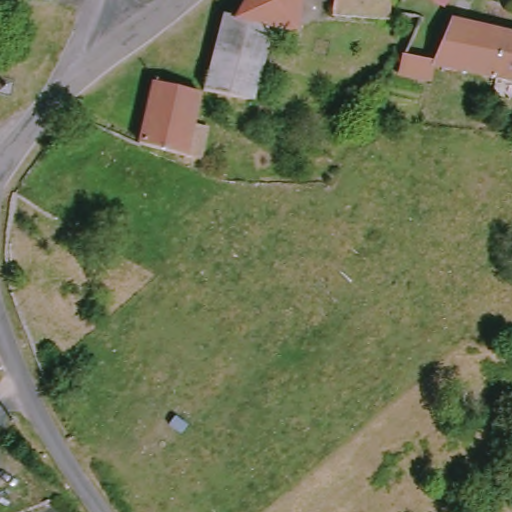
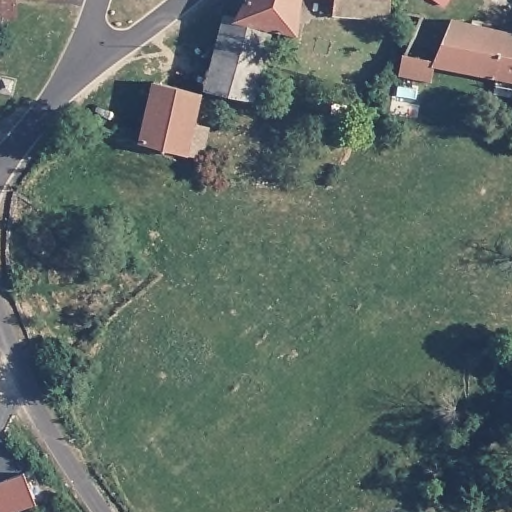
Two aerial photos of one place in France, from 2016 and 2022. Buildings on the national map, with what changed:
unchanged [(11,0),(12,15),(0,15),(0,0),(11,0)]
unchanged [(303,33),(269,28),(262,64),(217,54),(223,16),(231,16),(237,16),(245,0),(303,0),(303,13),(303,33)]
unchanged [(336,16),(336,0),(386,0),(387,16),(336,16)]
unchanged [(435,0),(446,0),(443,5),(435,0)]
unchanged [(462,66),(452,64),(460,25),(489,29),(490,23),(502,25),(507,26),(507,33),(512,34),(505,73),(462,66)]
unchanged [(512,34),(512,75),(505,73),(512,34)]
unchanged [(255,101),(210,93),(217,54),(262,64),(255,101)]
unchanged [(203,162),(196,161),(189,158),(141,145),(156,83),(205,92),(196,128),(211,131),(203,162)]
new [(24,473),(35,504),(11,512),(0,512),(0,482),(24,473)]

